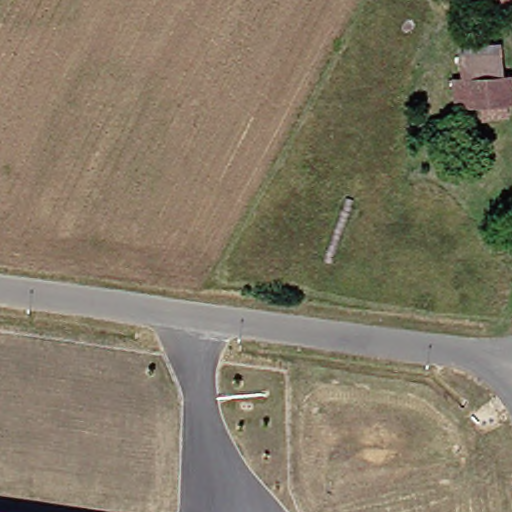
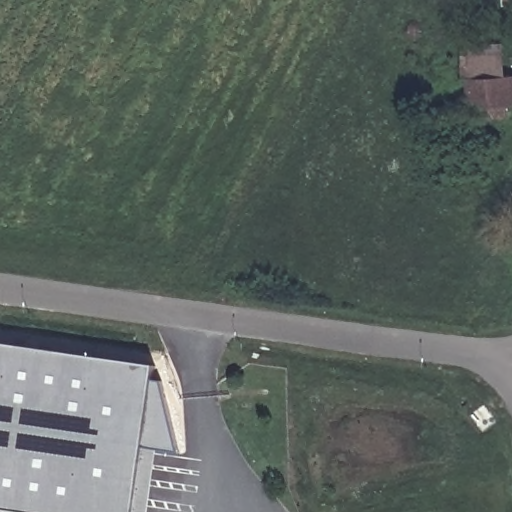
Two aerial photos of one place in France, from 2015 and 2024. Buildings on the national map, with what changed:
unchanged [(458,79),(468,78),(466,57),(506,54),(508,76),(512,76),(512,104),(459,106),(458,79)]
new [(156,367),(154,381),(136,512),(0,512),(0,344),(156,367)]
new [(154,381),(162,382),(179,452),(159,450),(150,512),(136,512),(154,381)]

